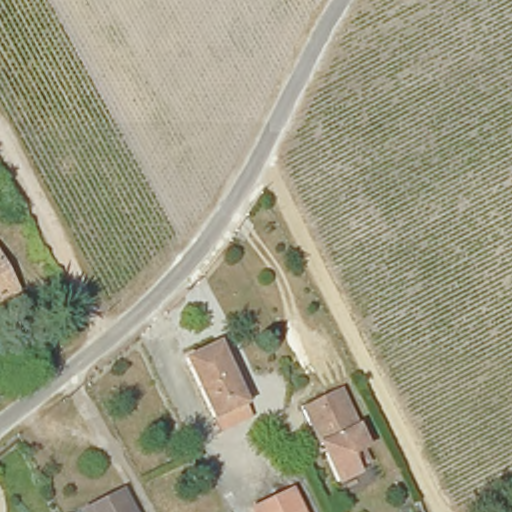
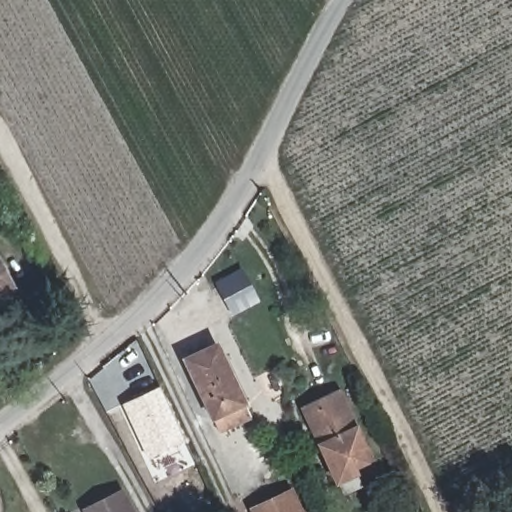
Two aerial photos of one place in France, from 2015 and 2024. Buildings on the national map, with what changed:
unchanged [(0,304),(0,261),(18,293),(14,296),(0,304)]
unchanged [(222,430),(189,362),(219,347),(254,415),(222,430)]
new [(124,404),(160,386),(186,441),(150,458),(124,404)]
unchanged [(344,485),(309,412),(318,407),(341,396),(367,448),(356,455),(366,474),(354,480),(344,485)]
unchanged [(137,512),(95,512),(99,510),(127,494),(137,512)]
unchanged [(296,512),(258,512),(289,496),(296,512)]

